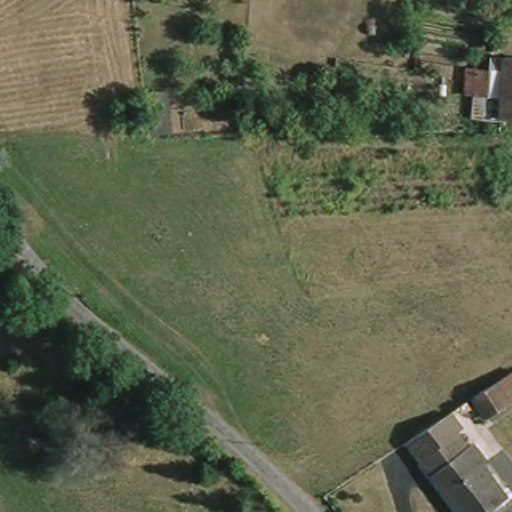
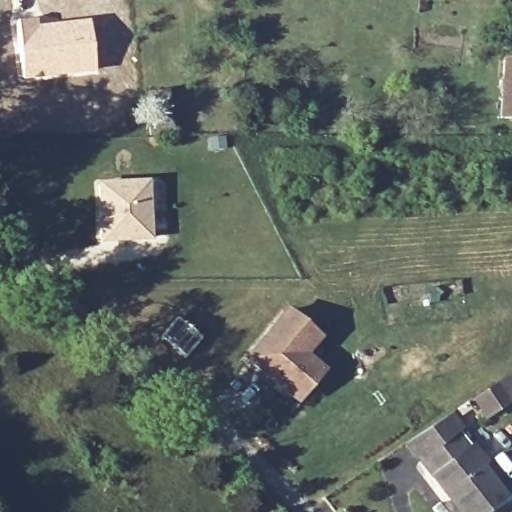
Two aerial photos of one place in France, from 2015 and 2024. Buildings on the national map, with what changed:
new [(37,18),(38,24),(89,20),(95,72),(21,80),(16,21),(37,18)]
unchanged [(497,117),(507,58),(512,59),(512,119),(497,117)]
unchanged [(488,64),(484,93),(463,90),(467,61),(488,64)]
unchanged [(143,90),(155,89),(165,87),(169,119),(159,120),(146,122),(143,90)]
new [(152,240),(101,242),(96,182),(150,180),(152,240)]
new [(323,336),(310,354),(327,368),(298,403),(244,359),(286,308),(323,336)]
unchanged [(512,366),(512,411),(492,425),(471,392),(512,365),(512,366)]
unchanged [(460,435),(470,451),(478,447),(490,463),(483,467),(506,502),(491,512),(459,512),(415,440),(455,412),(468,430),(460,435)]

